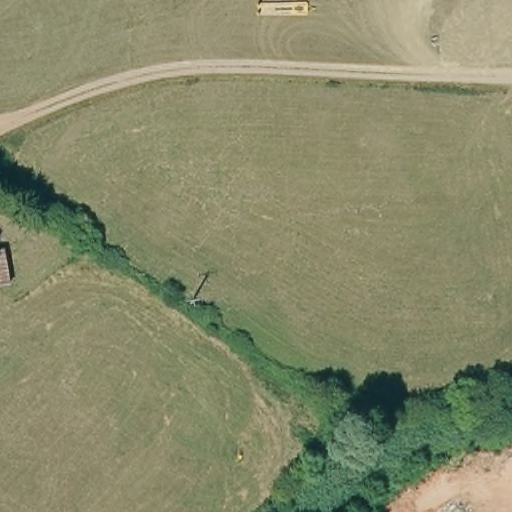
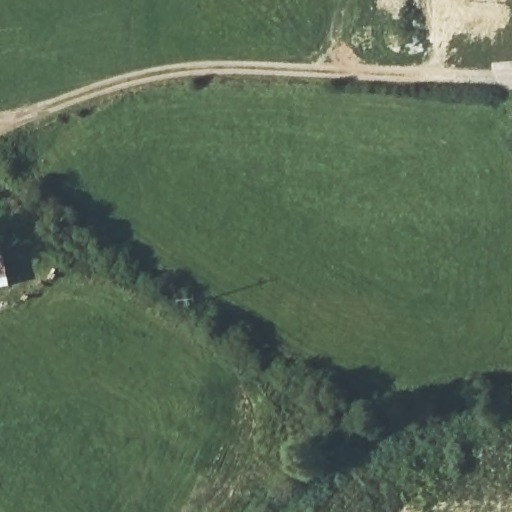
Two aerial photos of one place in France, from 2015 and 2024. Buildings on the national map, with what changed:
unchanged [(0,291),(0,253),(5,290),(0,291)]

